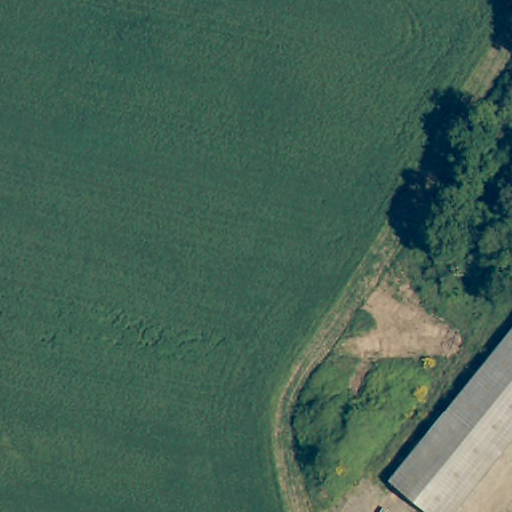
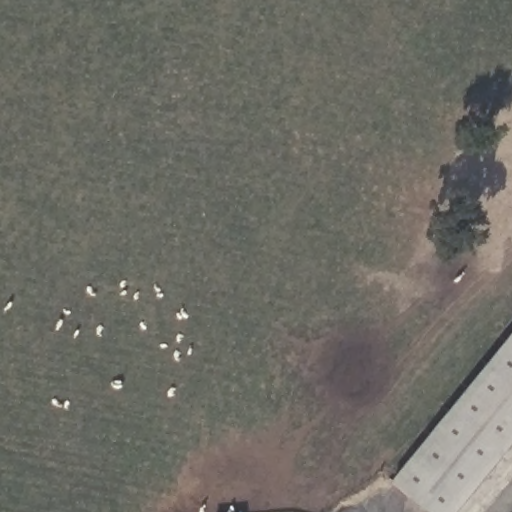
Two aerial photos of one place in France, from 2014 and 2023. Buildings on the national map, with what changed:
unchanged [(512,309),(512,438),(452,512),(422,512),(382,479),(512,309)]

